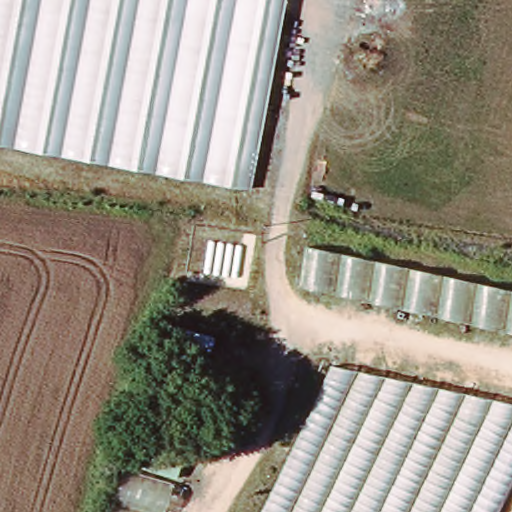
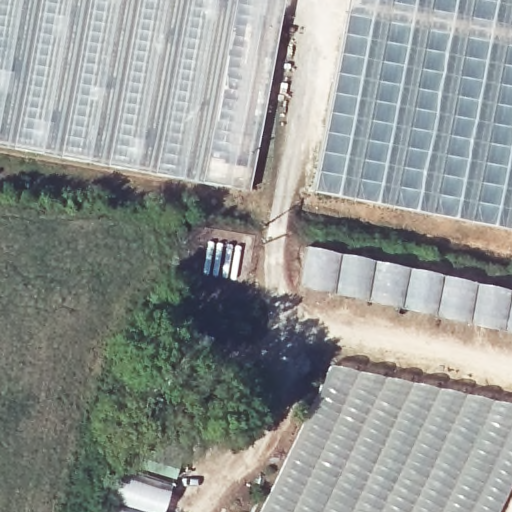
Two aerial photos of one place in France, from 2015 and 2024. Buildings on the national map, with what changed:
unchanged [(247,191),(188,180),(0,145),(0,0),(282,0),(247,191)]
new [(350,0),(512,0),(512,227),(314,187),(350,0)]
unchanged [(311,243),(512,283),(512,331),(300,281),(311,243)]
unchanged [(261,512),(332,371),(512,399),(512,492),(502,512),(261,512)]
unchanged [(141,459),(174,468),(163,512),(106,512),(117,470),(138,474),(141,459)]

